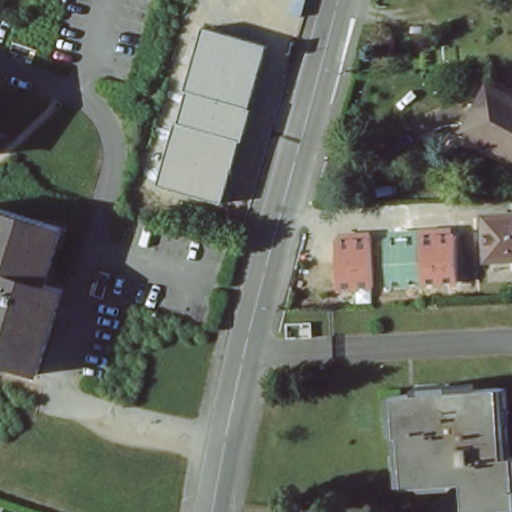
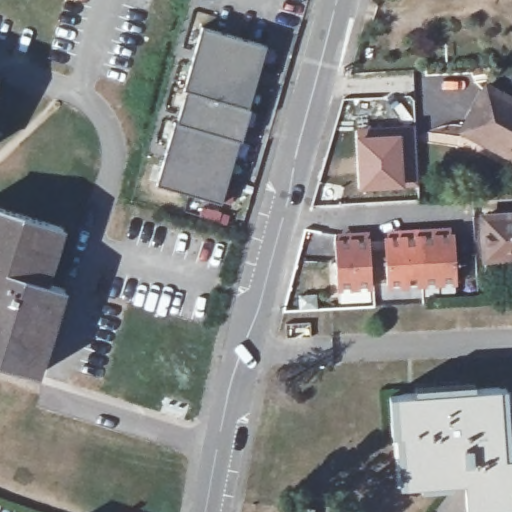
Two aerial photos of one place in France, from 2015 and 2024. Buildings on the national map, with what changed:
unchanged [(265,46),(248,107),(251,108),(241,142),(238,141),(221,202),(157,185),(174,121),(178,122),(187,90),(184,90),(202,29),(265,46)]
unchanged [(485,89),(512,103),(512,162),(511,162),(460,133),(485,89)]
new [(420,184),(405,187),(360,190),(356,137),(358,130),(414,124),(420,184)]
unchanged [(0,362),(0,208),(56,225),(38,280),(56,286),(30,371),(0,362)]
unchanged [(480,220),(512,218),(512,261),(482,262),(480,220)]
unchanged [(447,232),(447,237),(453,237),(456,283),(421,285),(418,233),(435,232),(447,232)]
unchanged [(388,235),(400,235),(418,233),(421,285),(386,287),(383,242),(389,241),(388,235)]
unchanged [(339,238),(350,237),(368,237),(371,288),(336,291),(333,245),(339,244),(339,238)]
unchanged [(463,483),(405,487),(401,436),(396,436),(394,396),(498,389),(503,458),(512,458),(512,508),(465,511),(463,483)]
unchanged [(281,508),(310,512),(281,512),(281,508)]

